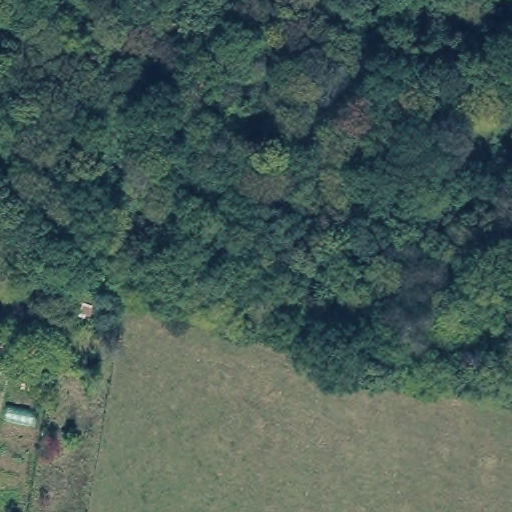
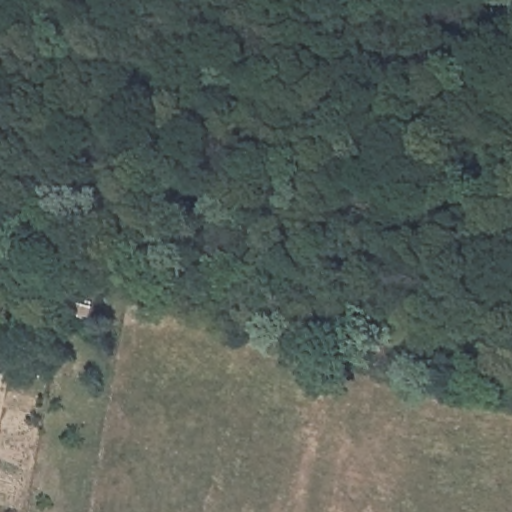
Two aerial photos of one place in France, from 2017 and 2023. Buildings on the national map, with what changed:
unchanged [(30,295),(71,303),(65,335),(25,326),(30,295)]

